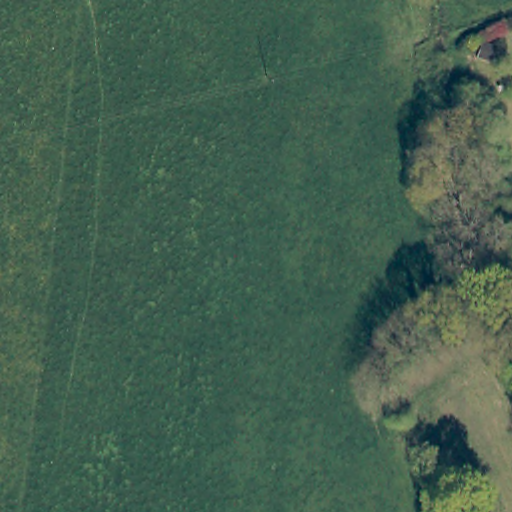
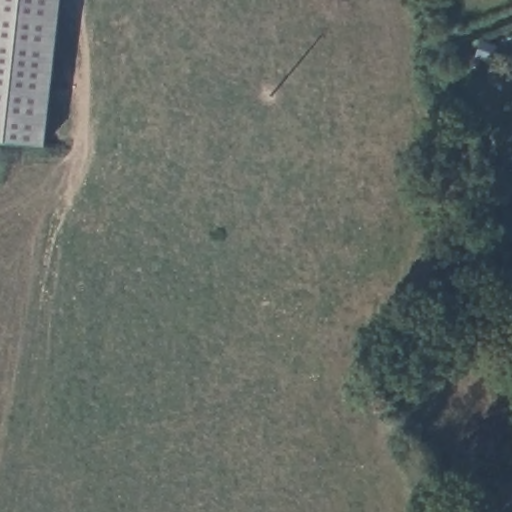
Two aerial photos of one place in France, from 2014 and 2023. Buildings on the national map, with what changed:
new [(44,149),(0,145),(0,0),(60,0),(44,149)]

